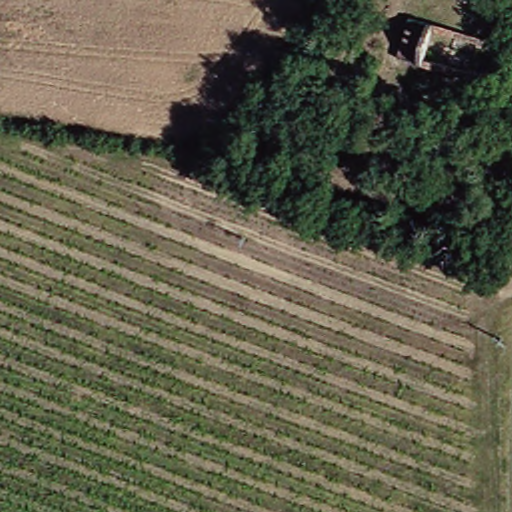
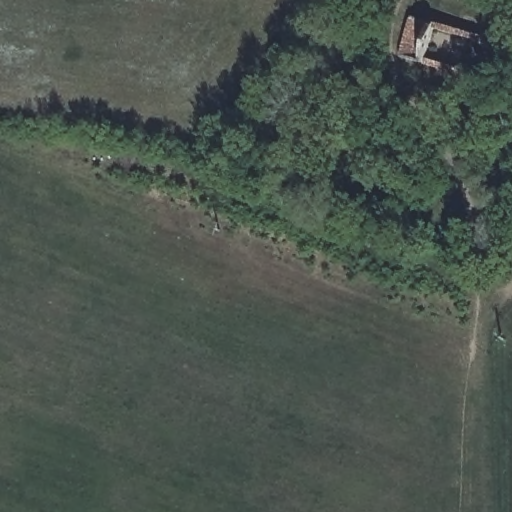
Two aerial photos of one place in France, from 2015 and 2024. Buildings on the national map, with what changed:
unchanged [(420,31),(415,75),(395,71),(401,29),(420,31)]

